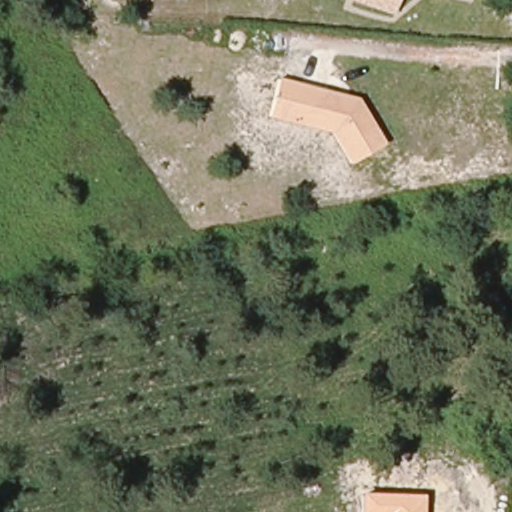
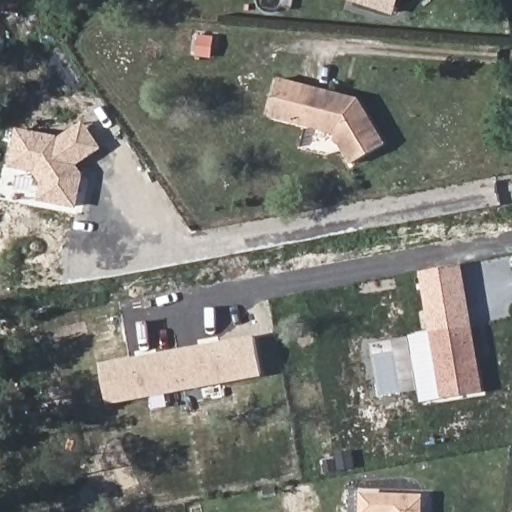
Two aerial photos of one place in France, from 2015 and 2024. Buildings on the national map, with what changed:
unchanged [(345,0),(398,0),(392,16),(345,0)]
unchanged [(349,164),(332,133),(268,117),(277,77),(358,98),(385,144),(349,164)]
new [(59,136),(83,120),(102,148),(77,165),(83,174),(76,209),(36,201),(40,183),(33,172),(10,165),(15,127),(59,136)]
new [(482,391),(441,398),(416,275),(460,266),(482,391)]
new [(108,404),(100,363),(252,335),(260,376),(108,404)]
unchanged [(360,493),(423,494),(423,512),(360,512),(360,493)]

